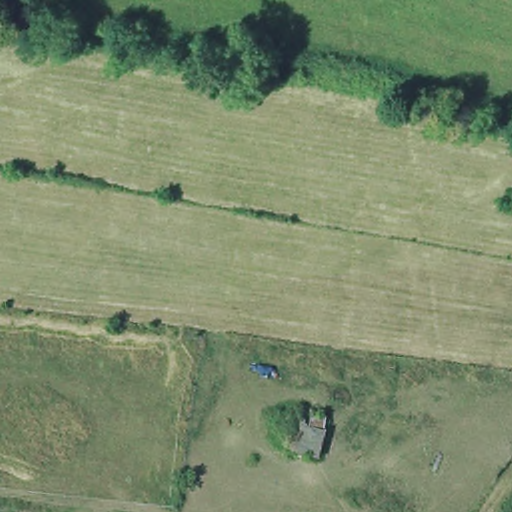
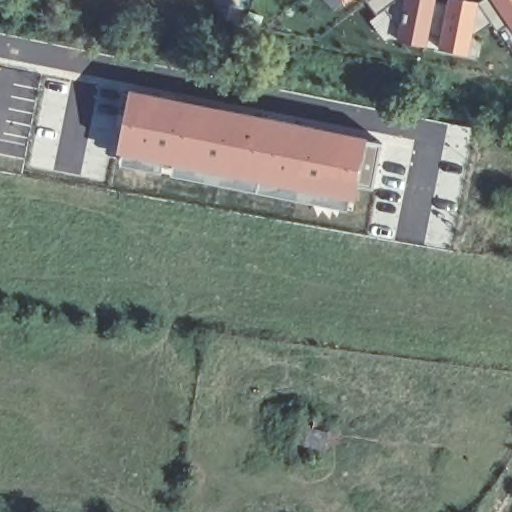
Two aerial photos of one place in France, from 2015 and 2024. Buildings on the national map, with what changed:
new [(336,0),(348,0),(340,6),(336,0)]
new [(367,0),(399,0),(379,15),(367,0)]
new [(507,25),(495,30),(492,23),(470,37),(467,55),(437,50),(437,36),(427,32),(424,49),(395,39),(403,0),(435,0),(434,4),(444,5),(445,0),(452,0),(478,6),(484,0),(512,0),(512,31),(507,25)]
new [(378,144),(372,187),(354,185),(352,198),(120,154),(129,92),(378,144)]

